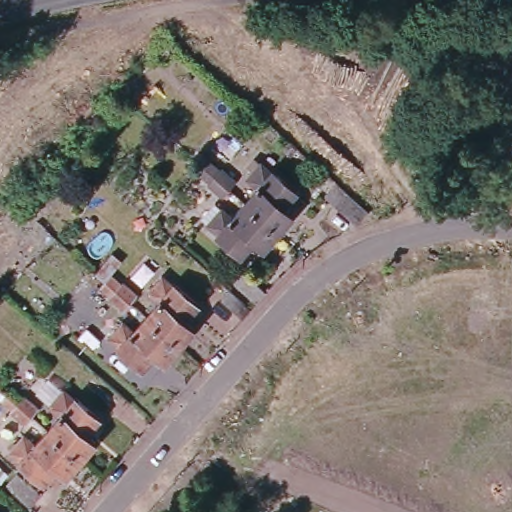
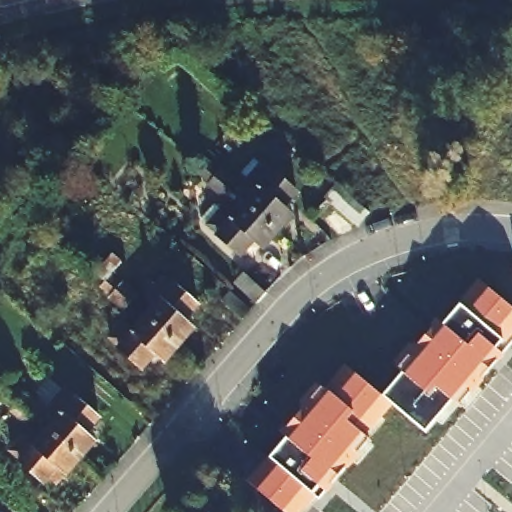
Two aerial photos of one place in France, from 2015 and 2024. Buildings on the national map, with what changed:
unchanged [(255,185),(245,176),(257,161),(268,170),(270,168),(293,189),(280,204),(289,213),(275,229),(242,200),(255,185)]
unchanged [(224,199),(211,188),(213,185),(202,176),(207,169),(211,165),(223,174),(225,173),(238,184),(232,191),(224,199)]
unchanged [(260,245),(251,237),(237,253),(214,233),(215,230),(205,222),(218,207),(228,215),(242,200),(275,229),(260,245)]
unchanged [(118,308),(106,297),(107,295),(95,285),(102,279),(105,274),(117,284),(120,282),(132,292),(125,299),(118,308)]
unchanged [(155,299),(144,289),(157,275),(168,285),(169,284),(192,304),(179,319),(188,327),(175,342),(142,314),(155,299)]
new [(283,434),(315,394),(320,399),(340,375),(376,406),(395,382),(390,377),(423,339),(428,343),(472,289),(512,322),(512,342),(452,414),(445,409),(419,441),(383,412),(357,443),(362,448),(312,509),(307,504),(300,512),(266,512),(243,493),(288,438),(280,448),(275,443),(283,434)]
unchanged [(158,360),(150,353),(137,367),(113,347),(115,344),(105,334),(117,320),(128,330),(142,314),(175,342),(158,360)]
new [(431,329),(436,333),(428,343),(423,339),(431,329)]
unchanged [(12,414),(14,412),(2,401),(8,395),(12,390),(25,400),(26,399),(39,409),(32,416),(25,425),(12,414)]
unchanged [(62,416),(51,407),(63,393),(74,402),(77,399),(100,419),(86,436),(95,444),(82,459),(49,431),(62,416)]
unchanged [(67,476),(57,468),(45,483),(22,463),(23,462),(12,452),(25,437),(35,447),(49,431),(82,459),(67,476)]

